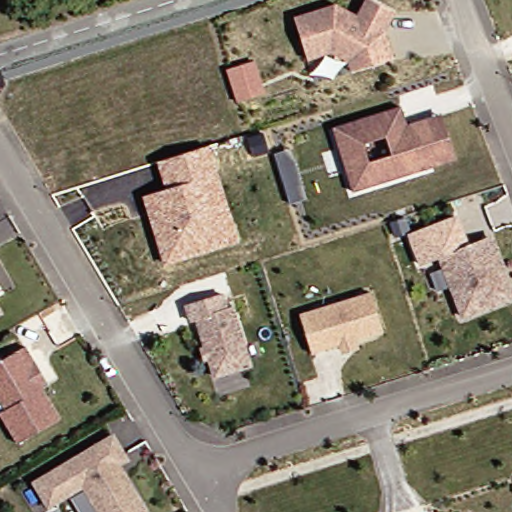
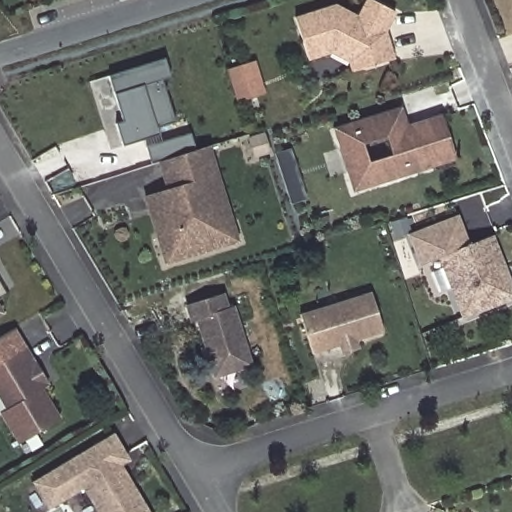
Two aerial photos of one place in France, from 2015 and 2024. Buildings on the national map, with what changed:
unchanged [(349,57),(332,48),(308,55),(295,13),(336,1),(358,12),(364,0),(380,0),(396,8),(386,27),(388,34),(394,55),(361,65),(352,68),(349,57)]
unchanged [(256,59),(267,93),(236,102),(226,69),(256,59)]
new [(165,60),(170,76),(161,79),(175,124),(160,129),(161,136),(126,147),(119,125),(125,122),(111,77),(165,60)]
unchanged [(353,193),(334,129),(401,108),(407,128),(414,149),(421,147),(428,170),(353,193)]
unchanged [(441,117),(455,161),(428,170),(421,147),(414,149),(407,128),(441,117)]
unchanged [(240,244),(163,265),(142,194),(165,188),(156,162),(210,145),(240,244)]
new [(417,265),(405,232),(458,215),(468,246),(445,255),(440,257),(417,265)]
unchanged [(440,257),(488,239),(511,299),(463,318),(440,257)]
unchanged [(313,355),(300,316),(371,293),(383,333),(355,342),(357,349),(344,353),(341,346),(313,355)]
unchanged [(216,377),(198,321),(193,322),(188,306),(223,295),(227,310),(233,308),(251,366),(216,377)]
unchanged [(0,310),(0,305),(2,309),(0,310)]
unchanged [(6,411),(0,401),(0,363),(25,348),(34,363),(48,386),(41,390),(60,420),(18,445),(0,415),(6,411)]
unchanged [(51,475),(114,437),(125,456),(128,461),(120,466),(128,480),(147,512),(99,512),(84,487),(65,499),(50,508),(35,484),(51,475)]

